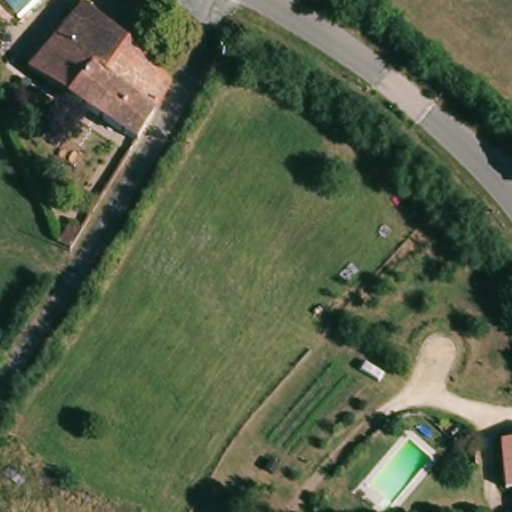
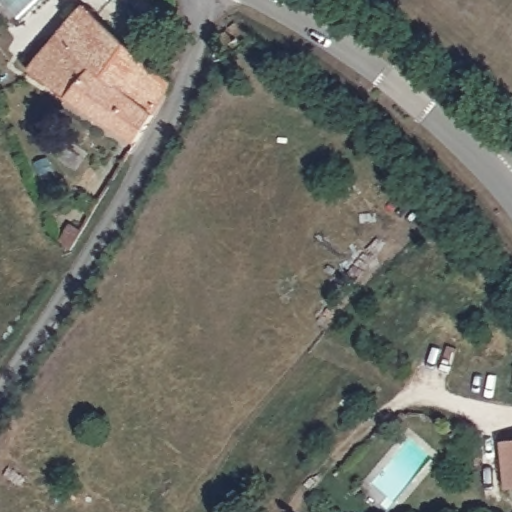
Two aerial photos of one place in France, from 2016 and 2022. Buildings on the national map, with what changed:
unchanged [(30,69),(30,65),(83,12),(170,87),(135,141),(30,69)]
unchanged [(65,212),(71,216),(75,210),(83,213),(67,239),(52,232),(65,212)]
unchanged [(509,460),(508,446),(508,442),(512,442),(512,492),(510,492),(509,460)]

